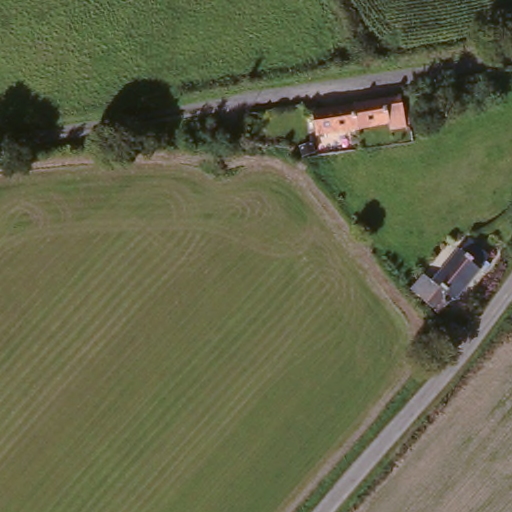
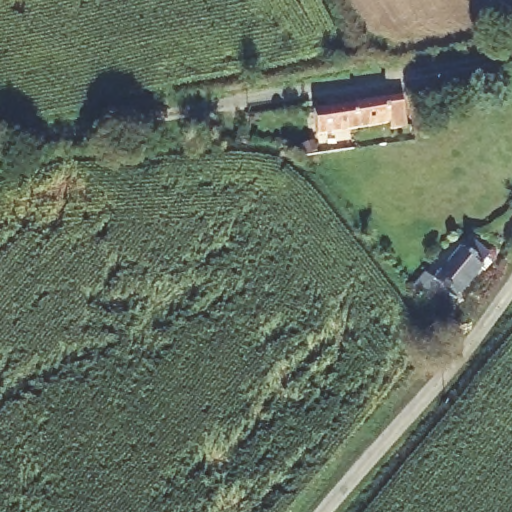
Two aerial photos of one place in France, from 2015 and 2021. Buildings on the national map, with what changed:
unchanged [(394,104),(400,134),(384,137),(383,132),(313,142),(308,121),(394,104)]
unchanged [(444,322),(412,292),(425,278),(435,287),(471,251),(489,267),(453,302),(448,298),(441,305),(451,316),(445,322),(453,330),(448,335),(440,327),(444,322)]

